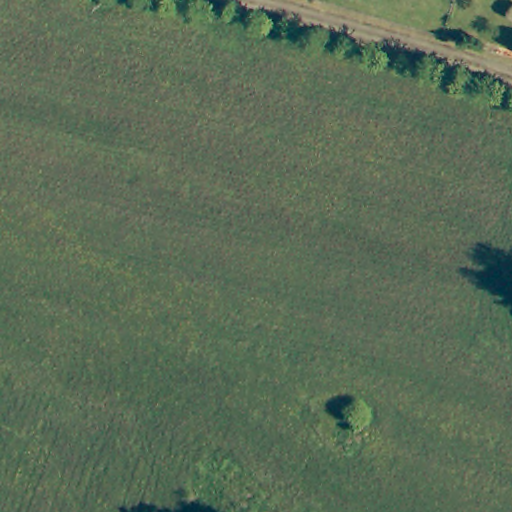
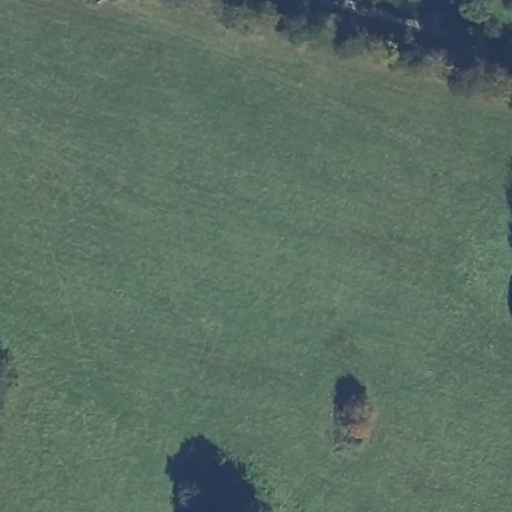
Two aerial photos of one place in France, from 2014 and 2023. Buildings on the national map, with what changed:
[]

